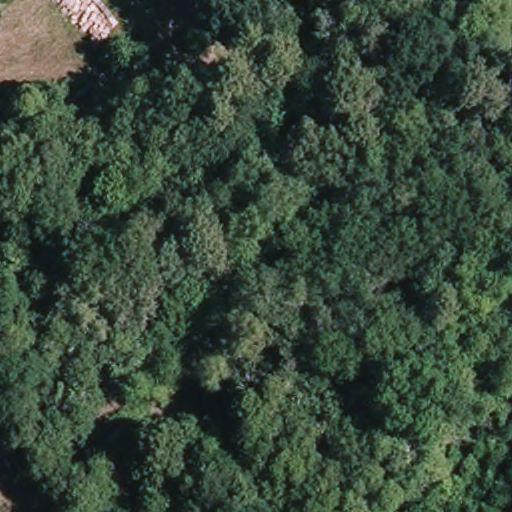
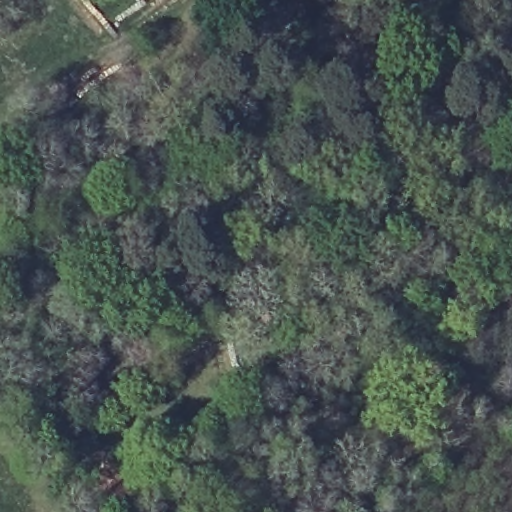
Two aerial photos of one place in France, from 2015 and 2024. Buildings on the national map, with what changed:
unchanged [(268,333),(262,320),(276,314),(282,326),(268,333)]
unchanged [(135,475),(142,481),(112,511),(87,486),(135,437),(153,456),(135,475)]

